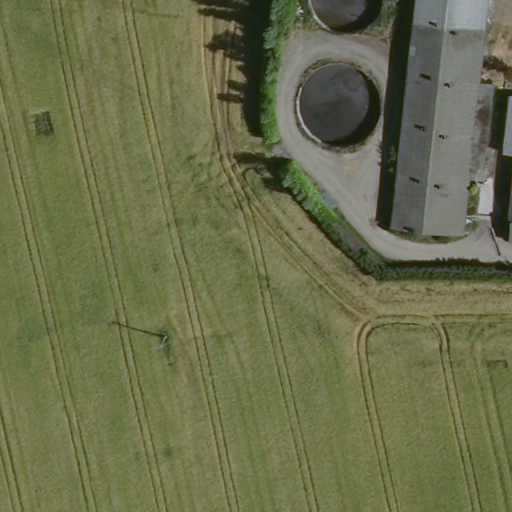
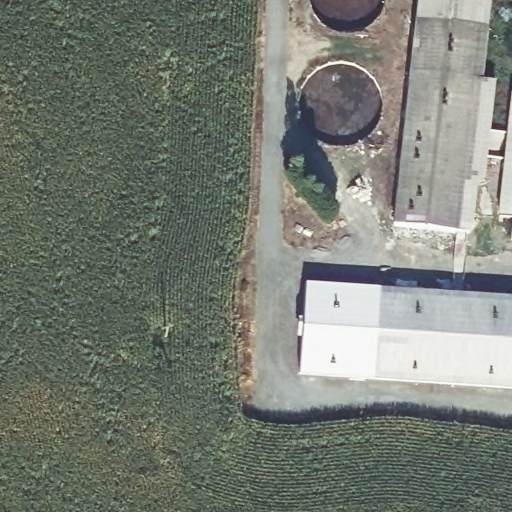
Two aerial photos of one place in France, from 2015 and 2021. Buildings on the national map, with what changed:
unchanged [(413,20),(415,0),(485,0),(483,27),(479,57),(432,56),(409,55),(413,20)]
unchanged [(432,56),(479,57),(477,81),(492,82),(481,179),(467,177),(463,211),(393,204),(409,55),(432,56)]
unchanged [(508,226),(509,217),(512,187),(512,226),(508,226)]
unchanged [(463,211),(460,235),(396,227),(391,227),(393,204),(463,211)]
new [(380,290),(512,297),(512,387),(376,380),(380,290)]

